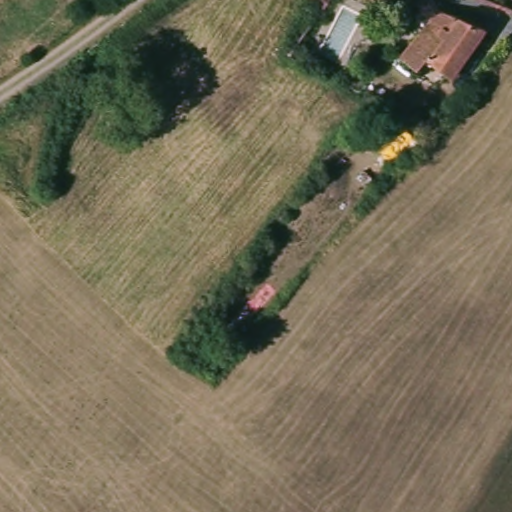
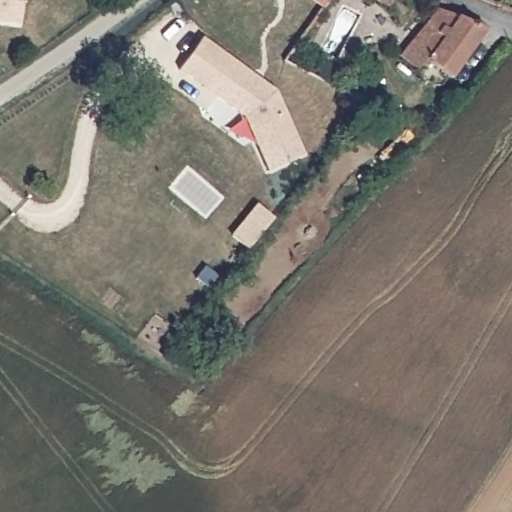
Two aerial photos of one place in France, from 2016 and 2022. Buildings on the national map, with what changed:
new [(0,0),(23,0),(20,24),(0,22),(0,0)]
unchanged [(366,0),(390,0),(385,9),(366,0)]
unchanged [(427,63),(416,76),(400,62),(441,14),(490,34),(453,85),(427,63)]
new [(243,117),(178,71),(202,36),(277,91),(305,154),(268,171),(243,117)]

